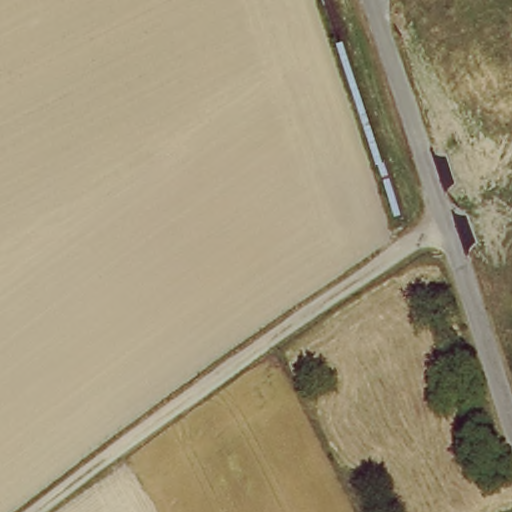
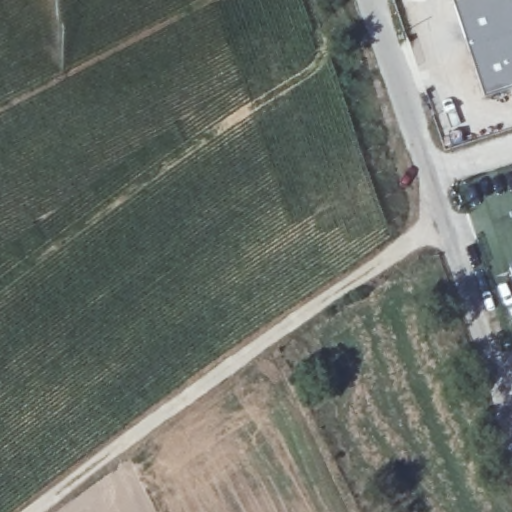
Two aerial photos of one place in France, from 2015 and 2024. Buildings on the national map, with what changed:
new [(484,97),(452,0),(512,0),(512,88),(484,97)]
new [(512,264),(512,272),(509,265),(512,264)]

